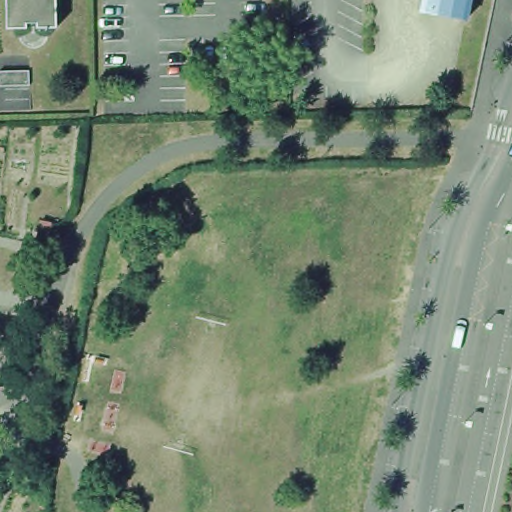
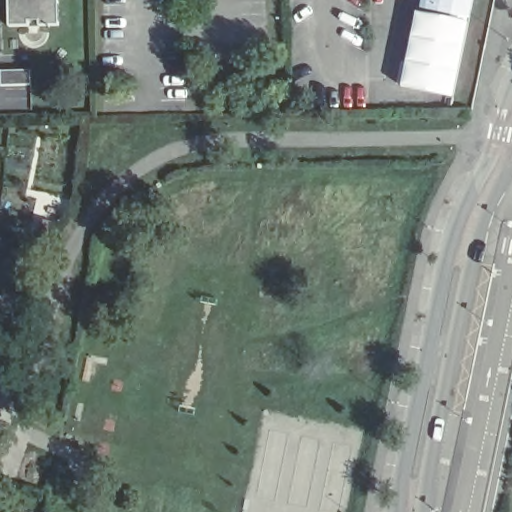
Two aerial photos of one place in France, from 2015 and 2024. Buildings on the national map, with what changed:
unchanged [(50,26),(30,27),(29,22),(19,22),(20,27),(0,27),(0,0),(49,0),(50,26)]
demolished [(419,0),(457,0),(453,20),(416,13),(419,0)]
new [(418,0),(470,0),(466,20),(416,12),(418,0)]
new [(416,12),(466,20),(451,96),(400,87),(416,12)]

